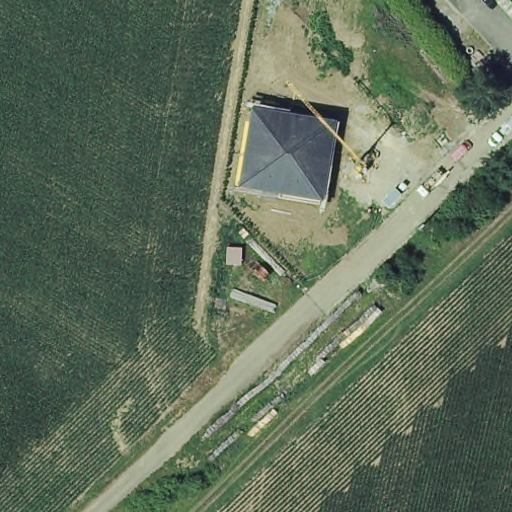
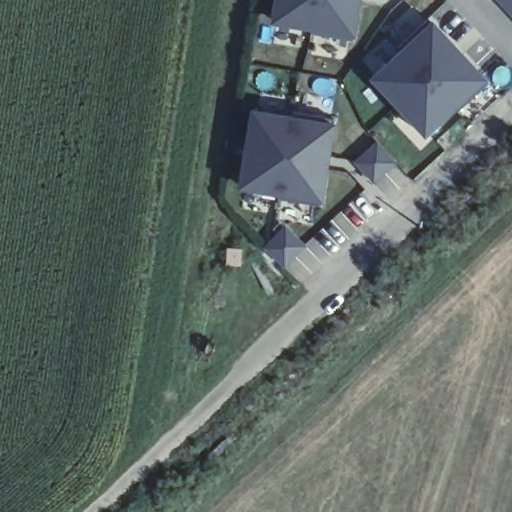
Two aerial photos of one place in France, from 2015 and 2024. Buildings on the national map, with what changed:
new [(355,0),(347,41),(306,34),(307,29),(272,24),(276,0),(355,0)]
new [(512,0),(512,21),(492,0),(512,0)]
new [(397,51),(393,48),(424,19),(483,83),(452,112),(449,108),(423,133),(370,75),(397,51)]
unchanged [(252,112),(286,118),(287,113),(329,119),(315,207),(272,200),(274,195),(239,189),(252,112)]
new [(372,143),(390,163),(368,183),(350,163),(372,143)]
new [(280,227),(300,246),(279,268),(260,248),(280,227)]

